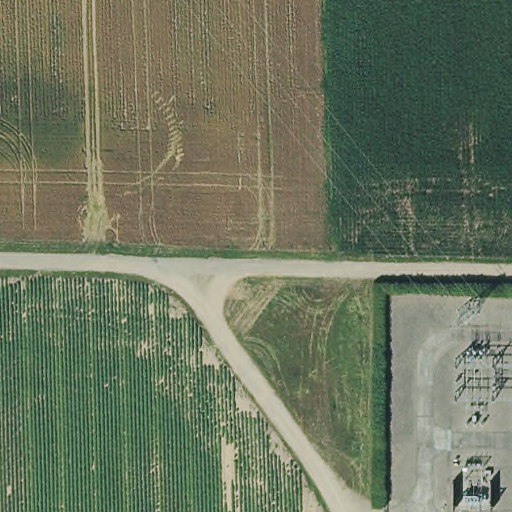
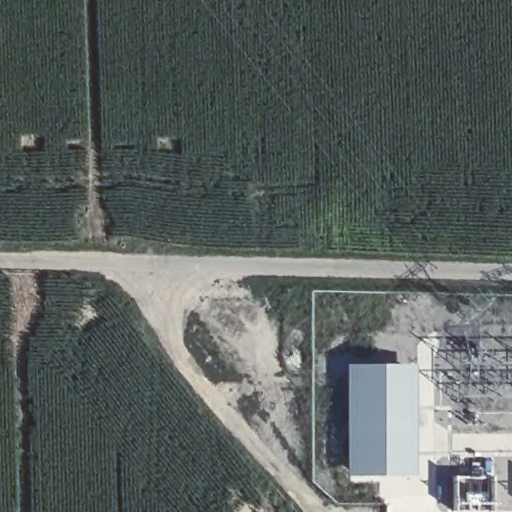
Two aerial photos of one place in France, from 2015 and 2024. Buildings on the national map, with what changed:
new [(415,365),(417,478),(349,476),(347,365),(415,365)]

